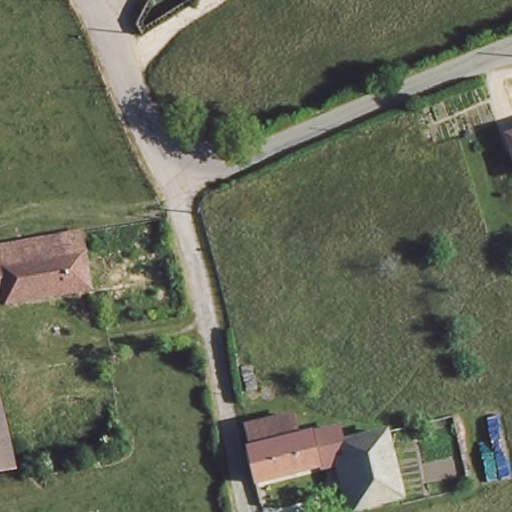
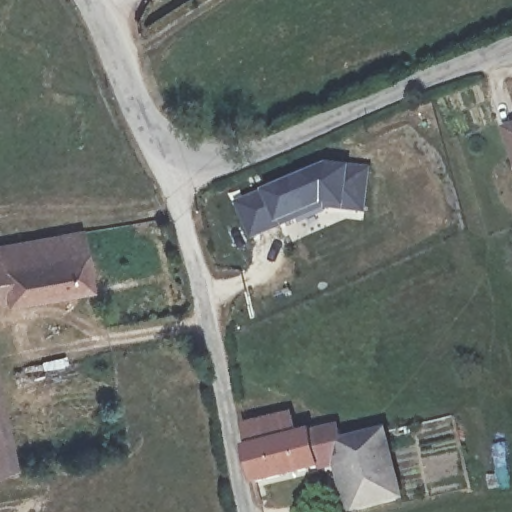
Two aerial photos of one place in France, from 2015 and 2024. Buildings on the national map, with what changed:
unchanged [(510,134),(512,133),(512,140),(510,134)]
new [(366,214),(325,209),(252,241),(236,203),(327,163),(371,168),(366,214)]
unchanged [(0,304),(0,246),(80,234),(91,287),(0,304)]
unchanged [(309,465),(253,475),(243,440),(254,437),(251,419),(296,409),(301,432),(309,465)]
unchanged [(309,465),(301,432),(342,425),(344,439),(347,459),(309,465)]
unchanged [(385,433),(397,504),(356,512),(355,512),(347,459),(344,439),(385,433)]
unchanged [(0,469),(0,444),(5,468),(0,469)]

